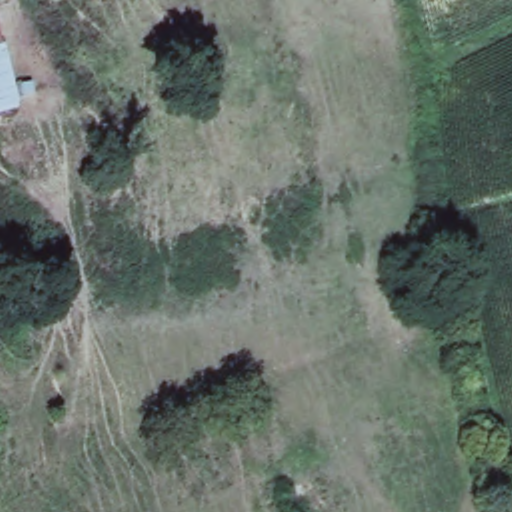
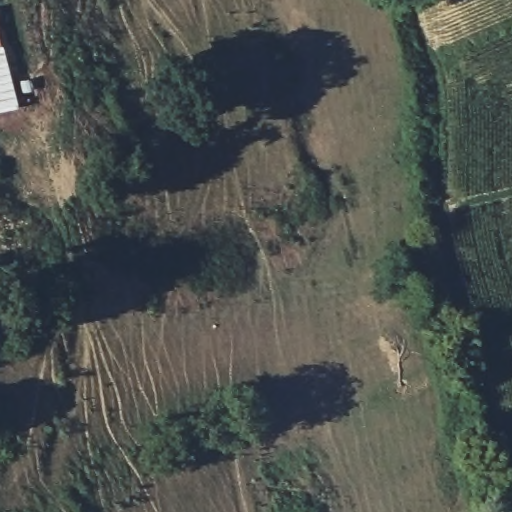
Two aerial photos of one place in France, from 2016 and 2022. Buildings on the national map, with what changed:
unchanged [(25,107),(0,112),(0,18),(25,107)]

